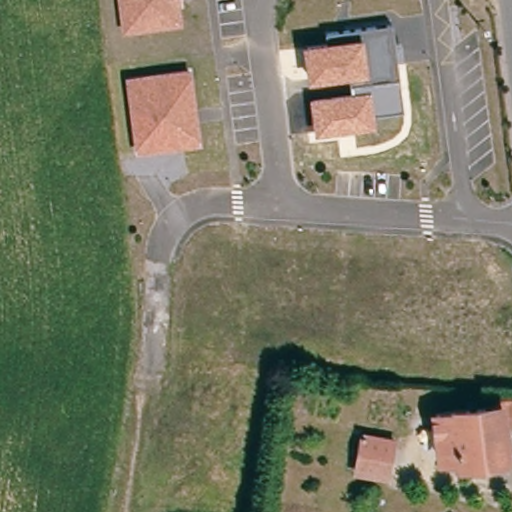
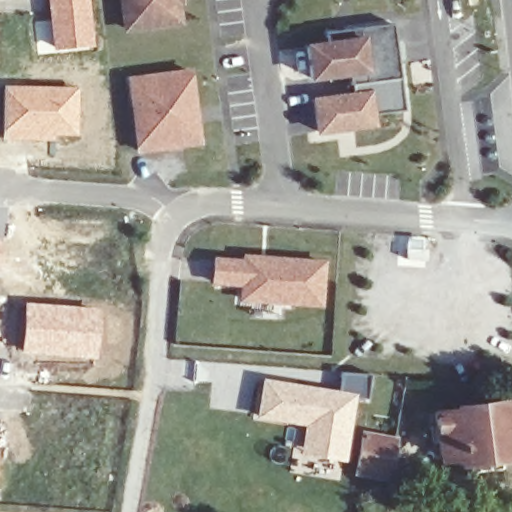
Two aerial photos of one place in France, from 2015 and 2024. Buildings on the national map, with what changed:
new [(46,0),(88,0),(92,46),(51,49),(46,0)]
unchanged [(131,29),(127,0),(178,0),(181,23),(131,29)]
unchanged [(392,22),(399,76),(350,82),(349,71),(311,75),(307,44),(327,41),(326,30),(392,22)]
unchanged [(191,67),(201,144),(135,152),(126,76),(191,67)]
unchanged [(404,110),(374,114),(376,128),(315,136),(311,98),(351,92),(350,82),(399,76),(404,110)]
new [(75,136),(51,135),(52,141),(0,139),(0,129),(1,85),(76,87),(75,136)]
new [(1,238),(0,252),(0,238),(1,238)]
new [(237,304),(238,288),(210,286),(213,258),(241,259),(241,255),(326,262),(322,309),(237,304)]
new [(18,352),(22,302),(98,308),(94,358),(18,352)]
new [(342,461),(299,454),(303,426),(254,418),(261,378),(341,391),(344,372),(359,374),(355,400),(342,461)]
unchanged [(499,398),(512,396),(512,429),(501,431),(504,449),(463,457),(461,446),(445,445),(437,408),(500,403),(499,398)]
unchanged [(366,434),(396,441),(389,485),(358,480),(366,434)]

